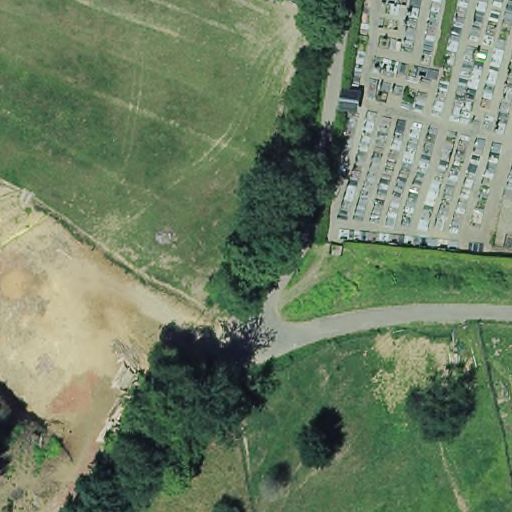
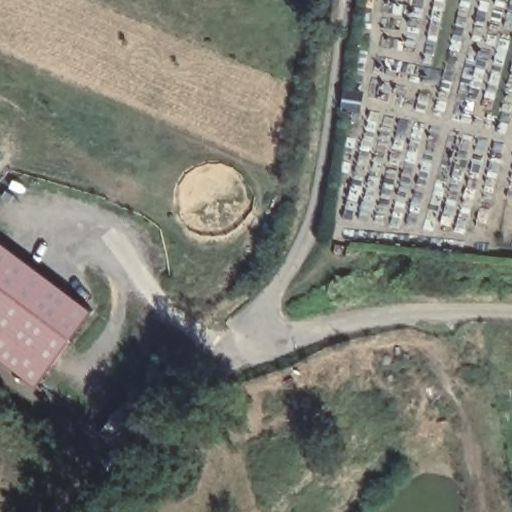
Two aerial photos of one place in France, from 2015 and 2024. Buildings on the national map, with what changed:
unchanged [(345,94),(362,96),(360,110),(343,108),(345,94)]
new [(37,388),(0,360),(0,241),(95,311),(37,388)]
new [(371,380),(371,356),(410,356),(410,380),(371,380)]

